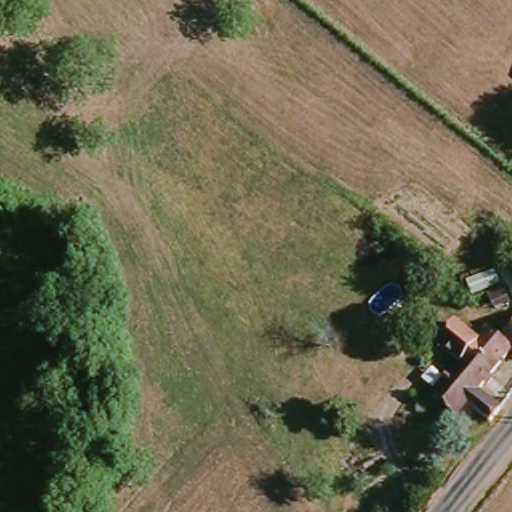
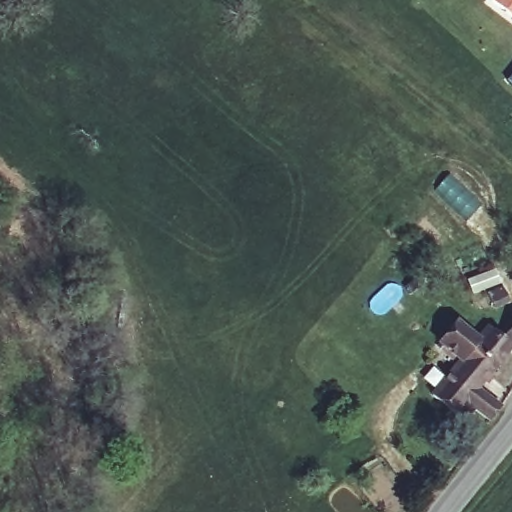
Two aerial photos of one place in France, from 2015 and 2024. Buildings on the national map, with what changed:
new [(512,0),(512,16),(492,0),(512,0)]
unchanged [(493,284),(499,296),(483,305),(476,293),(493,284)]
unchanged [(512,314),(512,341),(499,330),(512,314)]
unchanged [(457,406),(451,410),(427,393),(455,356),(435,340),(450,320),(453,320),(474,333),(479,324),(502,339),(473,384),(494,401),(483,415),(469,404),(464,409),(457,406)]

